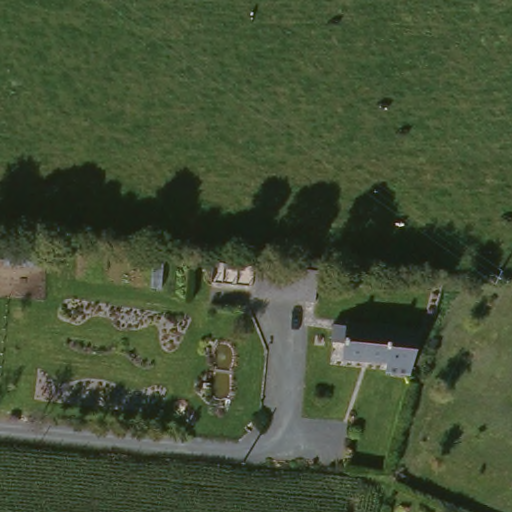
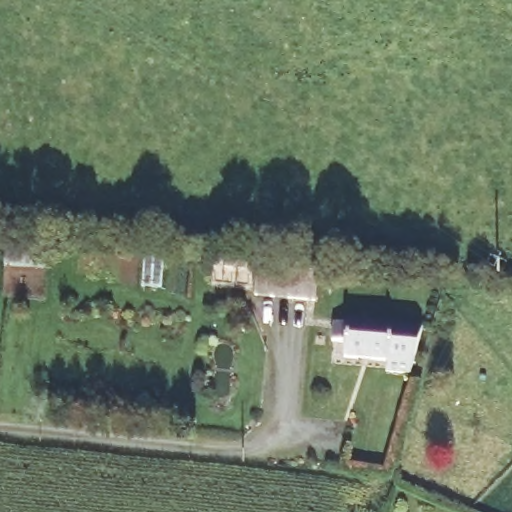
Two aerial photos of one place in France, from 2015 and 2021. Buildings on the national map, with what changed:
unchanged [(315,275),(312,307),(250,304),(253,271),(315,275)]
unchanged [(357,328),(415,332),(411,368),(367,364),(369,350),(356,349),(357,328)]

